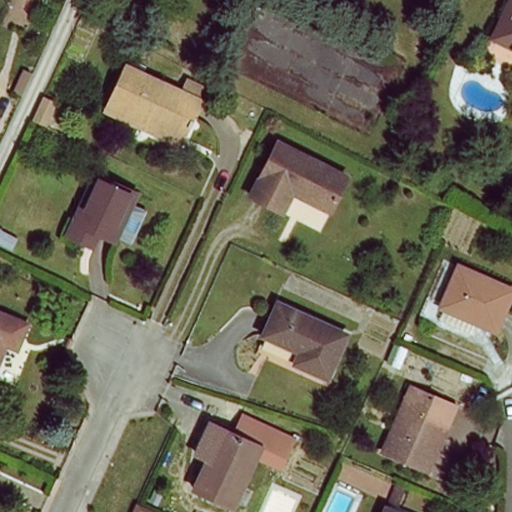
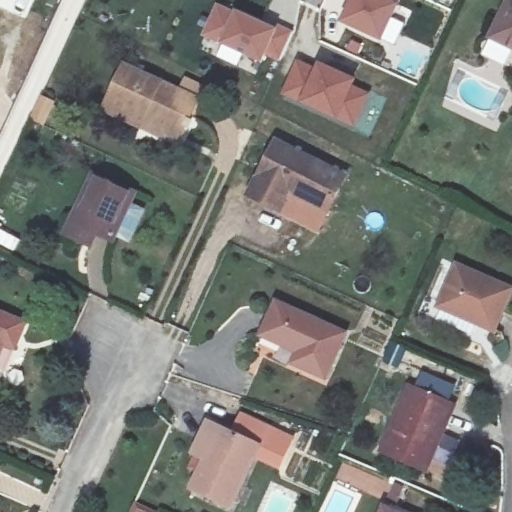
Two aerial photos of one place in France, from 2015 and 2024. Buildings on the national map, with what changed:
new [(391,0),(389,4),(393,5),(378,40),(340,22),(350,0),(391,0)]
unchanged [(488,39),(493,28),(508,0),(512,0),(512,50),(507,48),(488,39)]
new [(218,10),(237,19),(238,16),(275,34),(277,30),(294,37),(281,64),(266,57),(262,65),(205,39),(218,10)]
unchanged [(138,124),(104,109),(125,64),(195,95),(178,132),(175,141),(138,124)]
new [(298,68),(317,76),(320,70),(354,85),(351,91),(368,99),(354,130),(284,98),(298,68)]
unchanged [(319,208),(286,192),(274,214),(242,197),(272,143),(336,176),(319,208)]
unchanged [(89,181),(129,199),(108,244),(70,226),(89,181)]
unchanged [(454,265),(507,290),(489,330),(436,305),(454,265)]
unchanged [(319,376),(287,362),(292,352),(255,335),(268,305),(336,334),(319,376)]
unchanged [(16,319),(0,353),(0,311),(16,319)]
unchanged [(377,332),(368,350),(353,343),(362,325),(377,332)]
unchanged [(381,453),(411,390),(447,405),(439,424),(445,427),(426,473),(381,453)]
unchanged [(233,508),(192,490),(207,460),(199,456),(213,425),(226,431),(260,447),(233,508)]
unchanged [(397,512),(385,512),(381,510),(393,487),(406,493),(397,512)]

